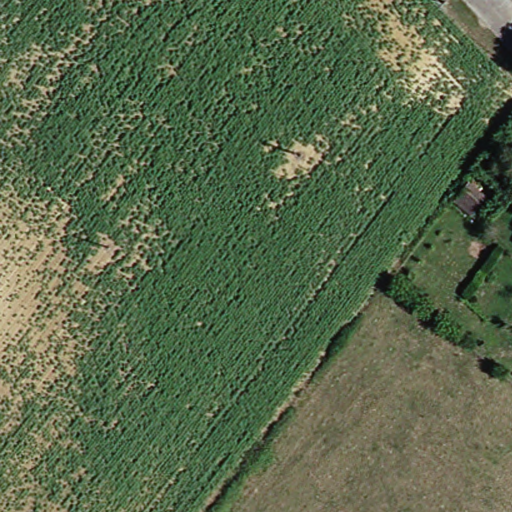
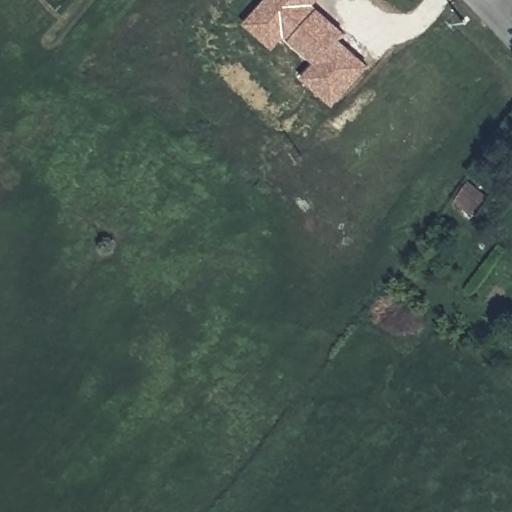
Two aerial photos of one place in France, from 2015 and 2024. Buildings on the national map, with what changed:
new [(317,5),(349,33),(342,40),(372,67),(335,106),(303,77),(315,63),(288,37),(276,50),(246,23),(267,0),(321,0),(317,5)]

